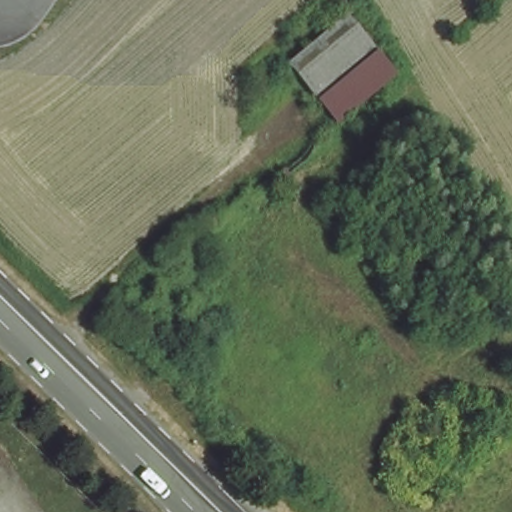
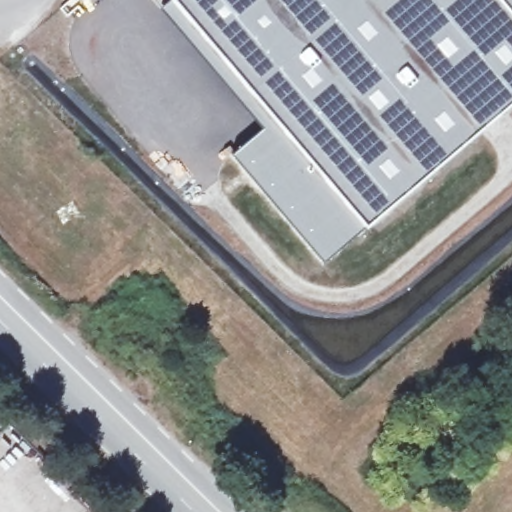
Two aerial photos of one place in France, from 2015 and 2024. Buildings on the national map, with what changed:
new [(230,154),(264,125),(161,4),(165,0),(512,0),(512,102),(323,263),(230,154)]

